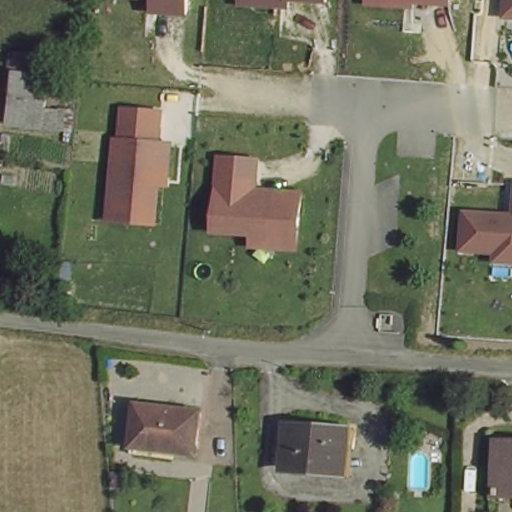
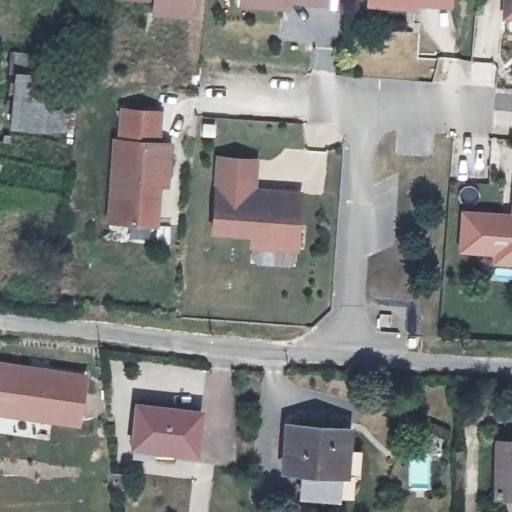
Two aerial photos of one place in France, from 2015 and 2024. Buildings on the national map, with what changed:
unchanged [(108,0),(191,0),(190,10),(108,2),(108,0)]
unchanged [(237,0),(286,0),(286,5),(237,5),(237,0)]
unchanged [(420,6),(418,10),(367,6),(368,0),(453,0),(453,8),(420,6)]
unchanged [(499,0),(512,0),(512,15),(498,14),(499,0)]
unchanged [(11,51),(52,58),(48,106),(67,110),(65,137),(2,129),(11,51)]
unchanged [(112,202),(116,136),(121,137),(123,105),(160,108),(158,139),(170,140),(168,173),(168,181),(160,181),(157,220),(126,218),(111,217),(112,202)]
unchanged [(288,237),(253,235),(254,223),(215,222),(219,147),(256,149),(254,180),(264,180),(275,181),(301,182),(300,213),(299,237),(288,237)]
unchanged [(491,249),(457,246),(460,205),(508,207),(511,177),(512,178),(512,261),(492,260),(491,249)]
new [(0,416),(0,359),(89,372),(79,426),(0,416)]
unchanged [(135,409),(198,416),(193,458),(171,455),(170,462),(130,458),(135,409)]
unchanged [(344,477),(280,472),(284,428),(347,433),(344,477)]
unchanged [(500,496),(501,442),(512,442),(512,497),(500,496)]

